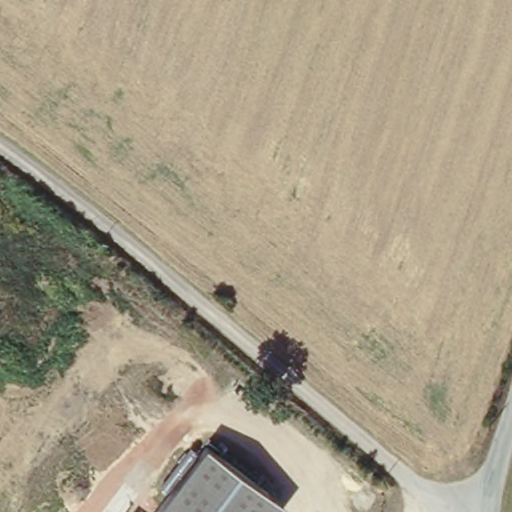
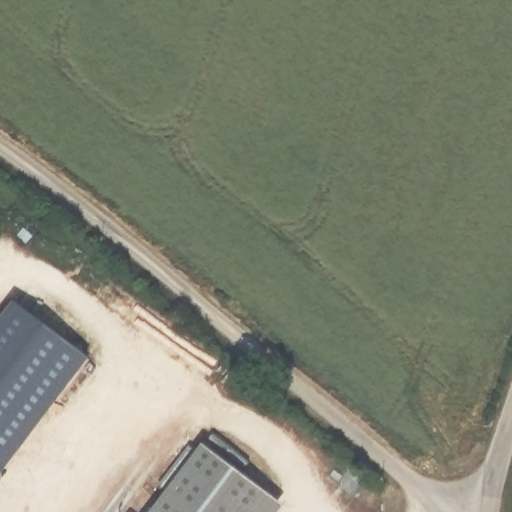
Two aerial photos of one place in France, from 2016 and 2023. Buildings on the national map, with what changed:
new [(24,296),(95,354),(0,477),(0,326),(24,296)]
unchanged [(211,453),(273,503),(265,512),(163,512),(211,453)]

